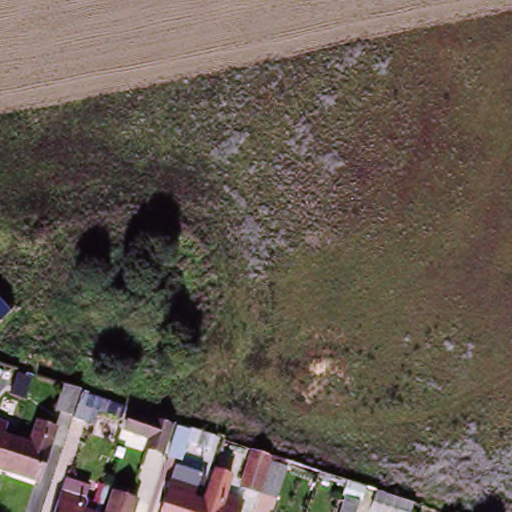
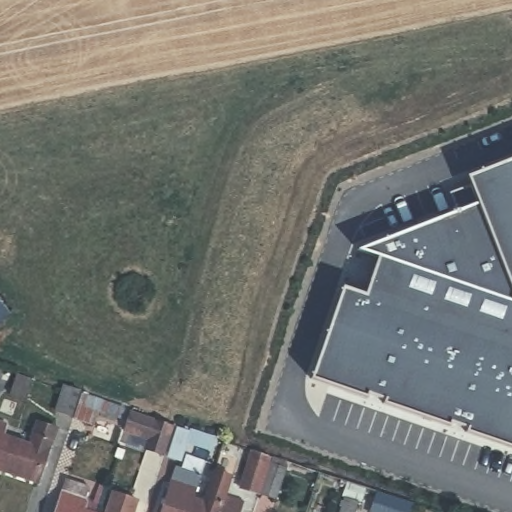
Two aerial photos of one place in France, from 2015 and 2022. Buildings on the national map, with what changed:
new [(469,431),(470,425),(450,419),(449,423),(384,401),(386,397),(367,390),(366,395),(311,377),(342,285),(366,293),(379,257),(357,249),(476,203),(467,183),(466,179),(512,159),(512,446),(469,431)]
unchanged [(74,395),(66,421),(50,415),(59,388),(74,395)]
unchanged [(120,411),(117,419),(90,412),(84,425),(72,420),(82,396),(120,411)]
unchanged [(167,427),(156,455),(140,448),(142,440),(120,431),(127,412),(167,427)]
unchanged [(29,433),(33,418),(52,426),(47,440),(32,482),(0,472),(0,460),(8,437),(26,442),(29,433)]
unchanged [(209,442),(205,453),(184,445),(176,462),(164,458),(174,429),(209,442)]
unchanged [(0,460),(0,434),(8,437),(0,460)]
unchanged [(264,459),(253,488),(236,483),(247,453),(264,459)]
unchanged [(297,472),(287,501),(259,490),(269,461),(297,472)]
unchanged [(172,467),(188,472),(182,494),(199,500),(194,512),(158,512),(172,467)]
unchanged [(199,500),(206,479),(222,485),(219,497),(236,502),(232,512),(194,512),(199,500)]
unchanged [(66,480),(87,487),(84,497),(81,497),(77,507),(93,512),(55,512),(66,480)]
unchanged [(120,494),(136,501),(132,512),(113,512),(120,494)]
unchanged [(358,512),(342,512),(347,498),(361,503),(358,512)]

